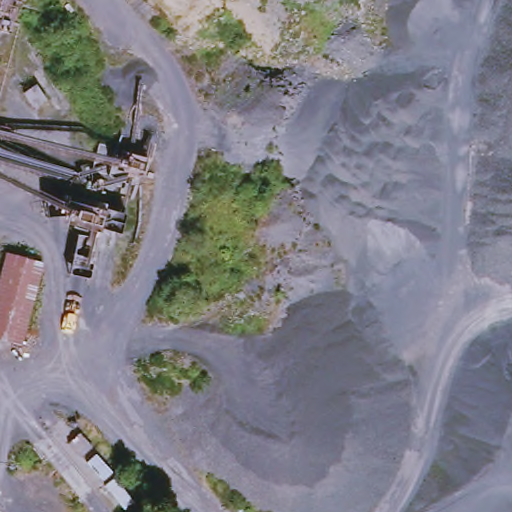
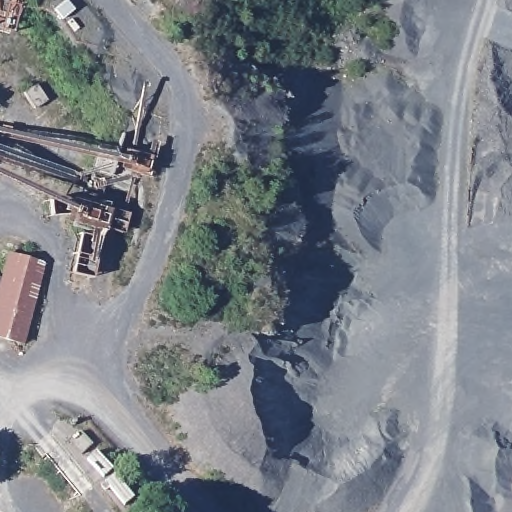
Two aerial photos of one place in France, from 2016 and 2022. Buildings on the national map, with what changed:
unchanged [(119,147),(111,175),(94,170),(100,143),(119,147)]
unchanged [(80,207),(83,199),(109,207),(106,215),(120,219),(117,231),(103,226),(100,234),(74,227),(76,219),(60,215),(63,202),(80,207)]
unchanged [(15,340),(0,337),(0,268),(4,251),(36,260),(15,340)]

